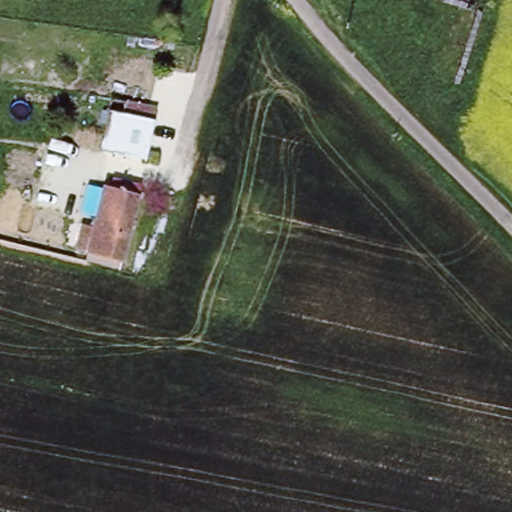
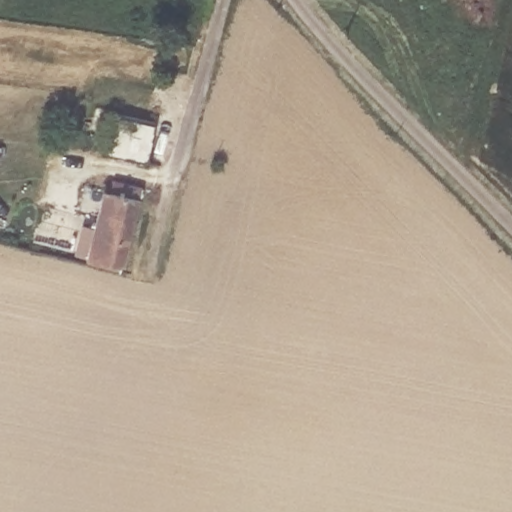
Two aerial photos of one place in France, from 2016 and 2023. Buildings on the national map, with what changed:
unchanged [(144,106),(135,142),(105,135),(113,99),(144,106)]
unchanged [(141,189),(122,262),(90,254),(106,190),(111,191),(113,181),(141,189)]

